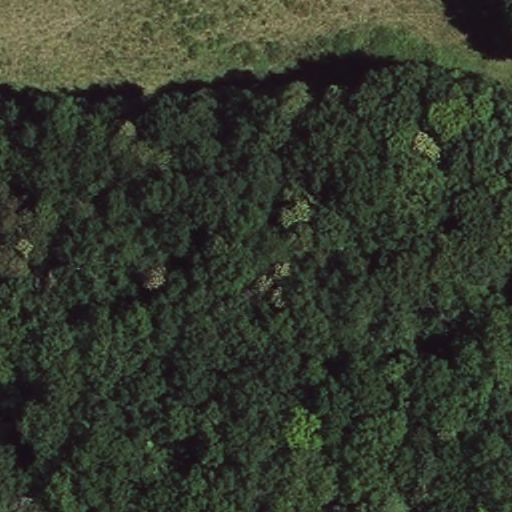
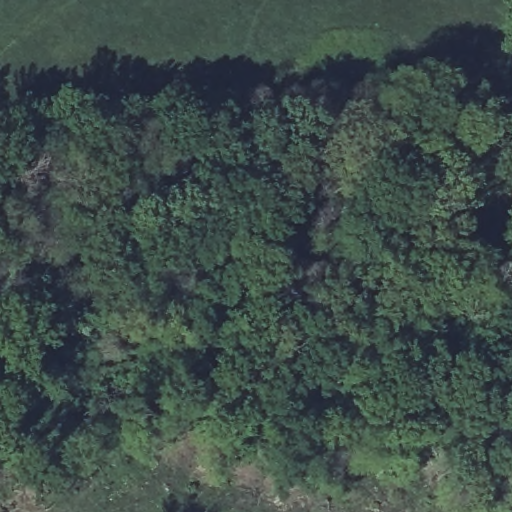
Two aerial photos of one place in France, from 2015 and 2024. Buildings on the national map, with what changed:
[]

